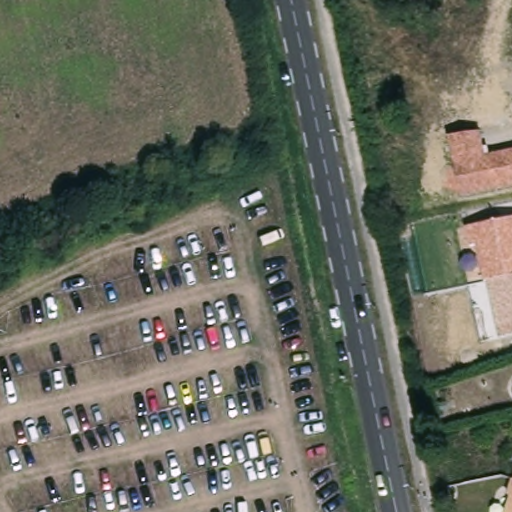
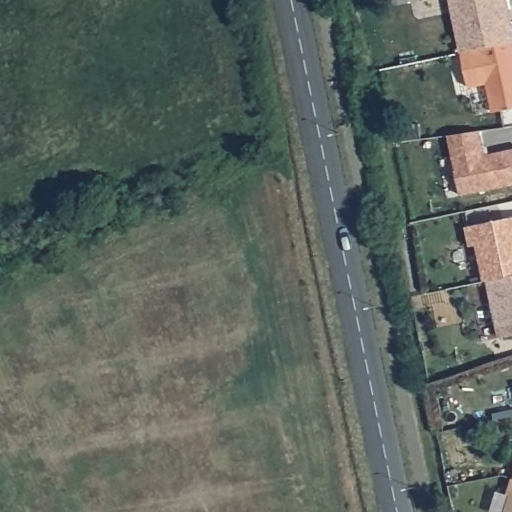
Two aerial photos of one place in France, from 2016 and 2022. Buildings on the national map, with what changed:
new [(456,25),(450,0),(508,0),(510,8),(512,17),(512,42),(462,52),(456,25)]
new [(512,108),(493,112),(487,84),(470,88),(462,52),(512,42),(512,108)]
unchanged [(481,131),(486,155),(512,150),(512,185),(462,195),(448,135),(481,131)]
unchanged [(512,335),(500,337),(487,281),(484,281),(477,245),(471,246),(467,227),(512,218),(512,335)]
unchanged [(512,512),(510,512),(512,506),(512,512)]

